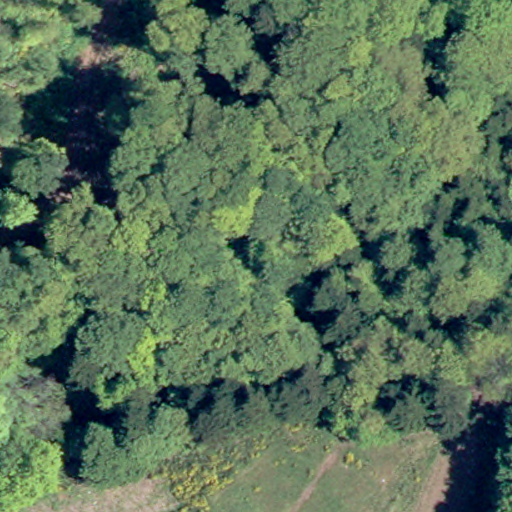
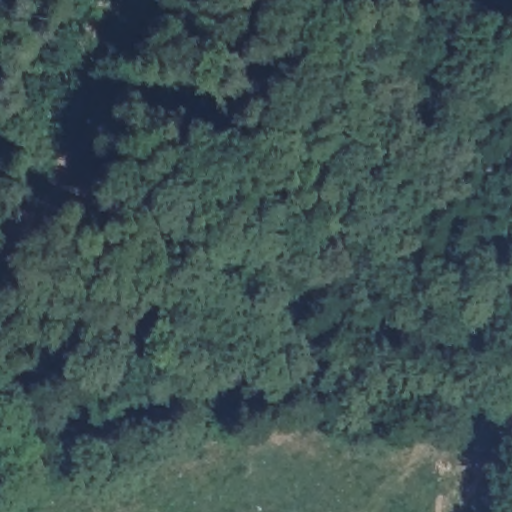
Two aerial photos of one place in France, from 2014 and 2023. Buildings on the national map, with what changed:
[]

